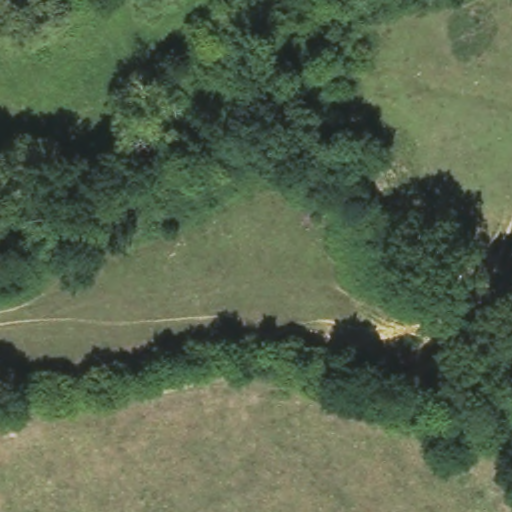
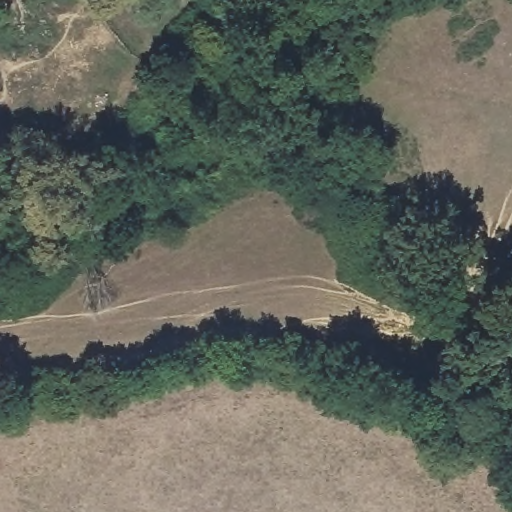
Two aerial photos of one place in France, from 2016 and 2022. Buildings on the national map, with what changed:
[]

